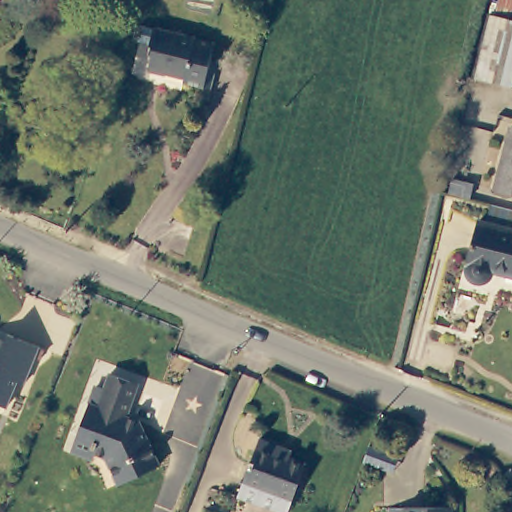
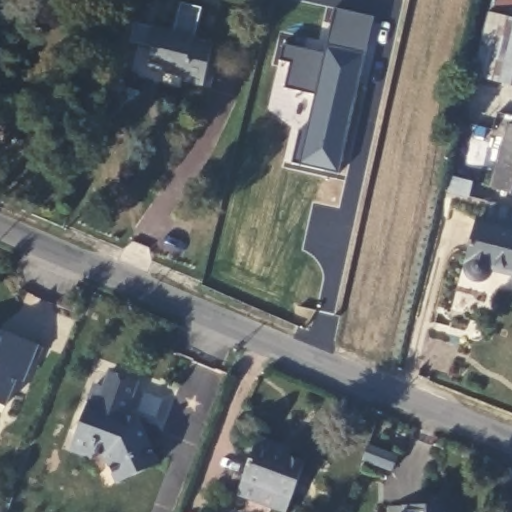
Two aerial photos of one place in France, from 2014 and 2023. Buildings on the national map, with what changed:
unchanged [(488,9),(496,11),(499,0),(512,0),(512,83),(470,73),(488,9)]
new [(338,175),(290,164),(297,130),(307,133),(315,95),(285,87),(290,65),(281,62),(285,46),(325,54),(335,11),(372,19),(338,175)]
unchanged [(202,55),(211,57),(203,85),(177,80),(178,74),(142,67),(146,47),(142,42),(130,41),(127,37),(126,34),(126,29),(128,26),(131,22),(146,26),(206,40),(202,55)]
unchanged [(505,132),(512,134),(512,184),(491,179),(505,132)]
unchanged [(485,270),(482,274),(478,277),(473,277),(469,277),(464,275),(461,272),(459,267),(471,217),(512,226),(512,273),(485,267),(485,270)]
unchanged [(12,382),(1,407),(0,406),(0,341),(3,333),(33,346),(18,384),(12,382)]
unchanged [(69,448),(75,432),(87,400),(96,402),(99,394),(90,391),(93,382),(102,386),(108,371),(135,380),(124,412),(127,420),(136,419),(156,461),(114,480),(103,453),(90,449),(88,456),(69,448)]
unchanged [(283,441),(295,445),(292,452),(309,458),(289,509),(240,490),(262,432),(283,441)]
unchanged [(450,507),(450,512),(402,512),(402,507),(450,507)]

